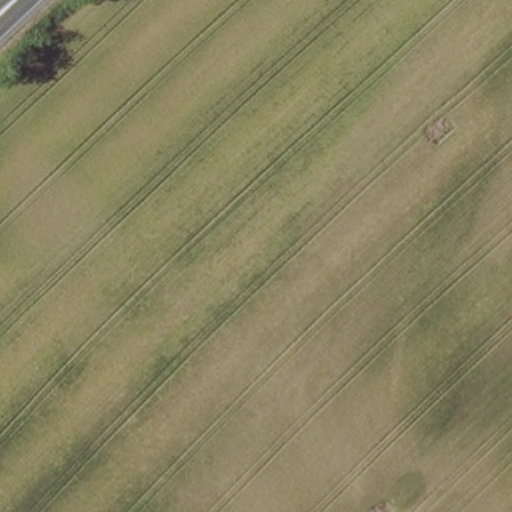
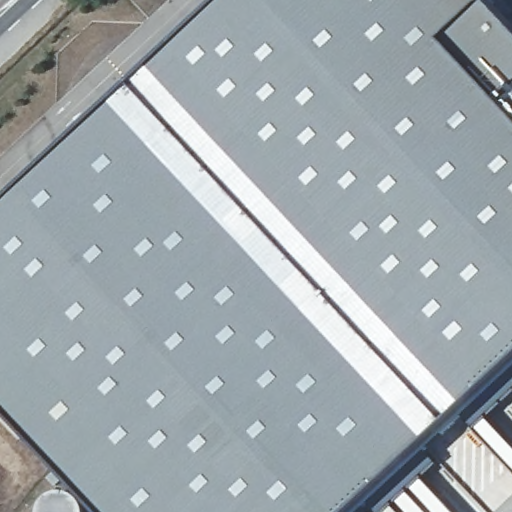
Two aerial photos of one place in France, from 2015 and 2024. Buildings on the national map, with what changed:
new [(512,40),(512,353),(344,512),(89,512),(0,418),(0,198),(208,0),(474,0),(512,40)]

